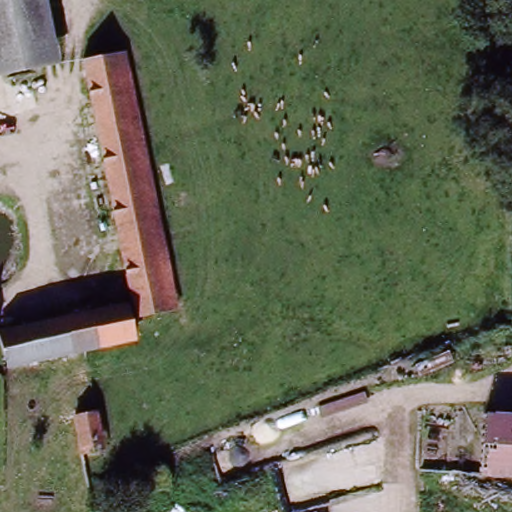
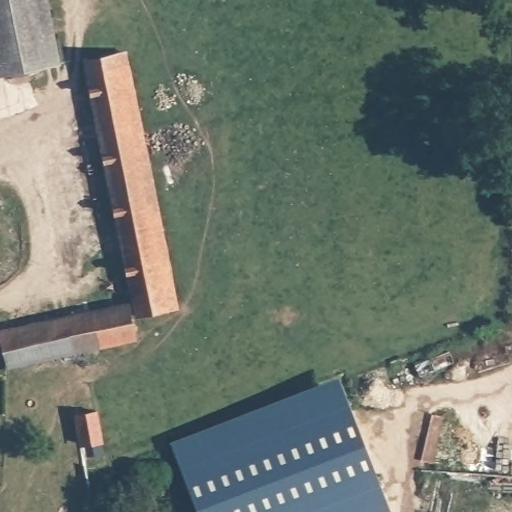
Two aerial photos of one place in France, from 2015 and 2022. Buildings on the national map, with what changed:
unchanged [(0,78),(0,0),(34,0),(50,66),(0,78)]
unchanged [(121,51),(172,302),(134,310),(83,59),(121,51)]
unchanged [(125,299),(127,307),(130,327),(65,342),(5,355),(0,340),(0,324),(125,299)]
new [(392,512),(197,512),(170,442),(339,377),(392,512)]
unchanged [(96,414),(103,458),(85,461),(82,443),(77,416),(96,414)]
unchanged [(512,418),(512,479),(482,477),(485,416),(512,418)]

